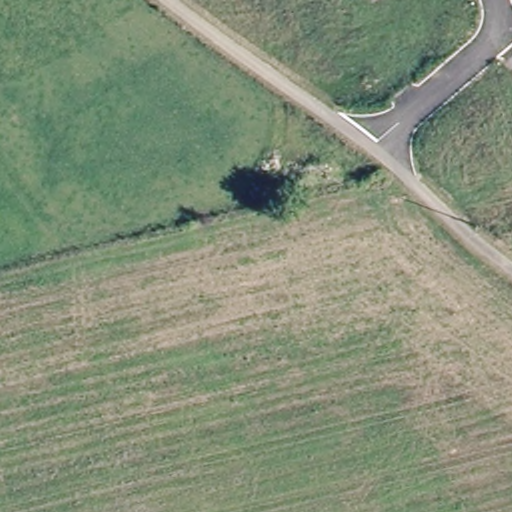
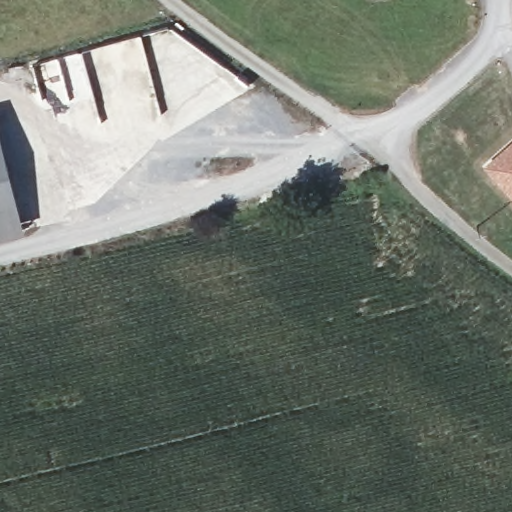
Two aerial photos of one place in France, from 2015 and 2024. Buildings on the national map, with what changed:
new [(482,165),(512,139),(512,198),(482,165)]
new [(0,240),(0,172),(16,235),(0,240)]

